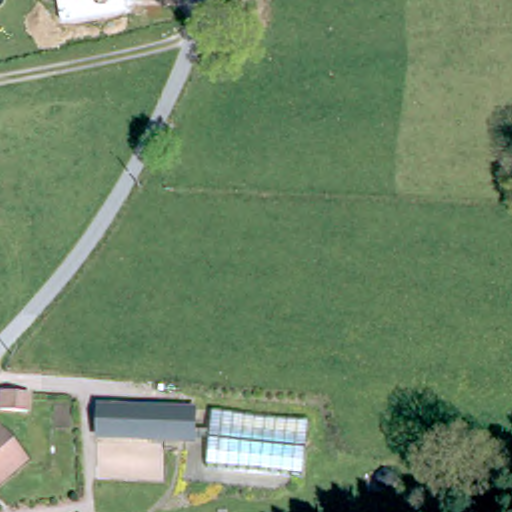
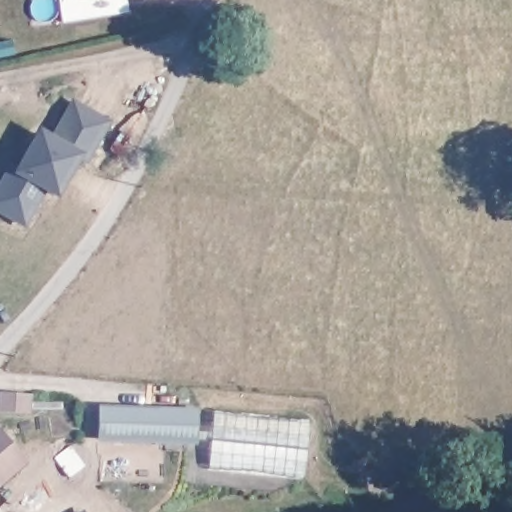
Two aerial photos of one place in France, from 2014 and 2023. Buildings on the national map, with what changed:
new [(86,160),(77,155),(59,192),(44,186),(24,225),(0,211),(0,185),(10,166),(20,170),(40,135),(50,140),(72,102),(107,122),(86,160)]
unchanged [(39,399),(38,417),(9,415),(9,413),(11,396),(26,398),(39,399)]
unchanged [(309,421),(304,474),(207,466),(209,441),(196,441),(196,444),(97,441),(98,405),(197,408),(196,430),(211,431),(212,412),(309,421)]
unchanged [(0,438),(27,468),(0,490),(0,438)]

